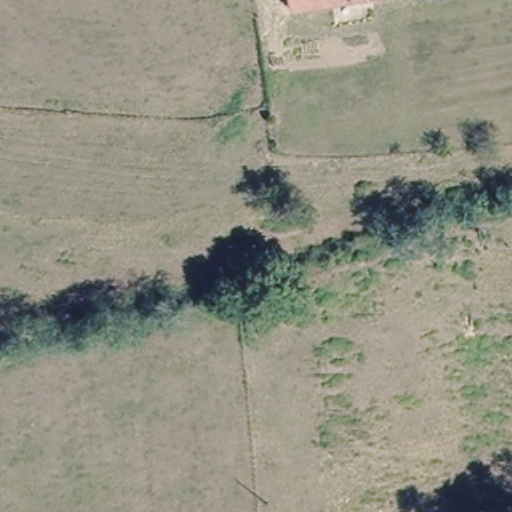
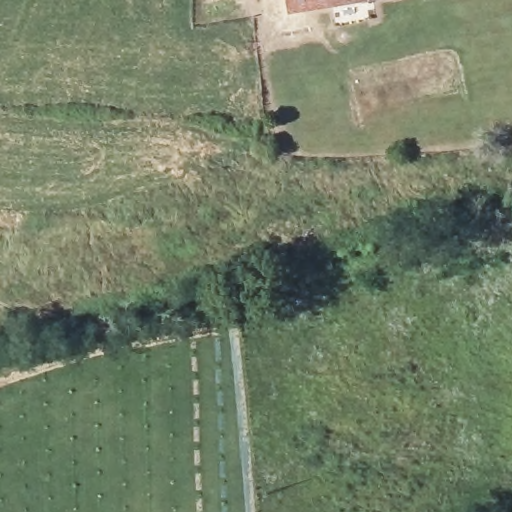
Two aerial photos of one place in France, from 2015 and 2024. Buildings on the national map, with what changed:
unchanged [(296,4),(295,0),(325,0),(296,4)]

